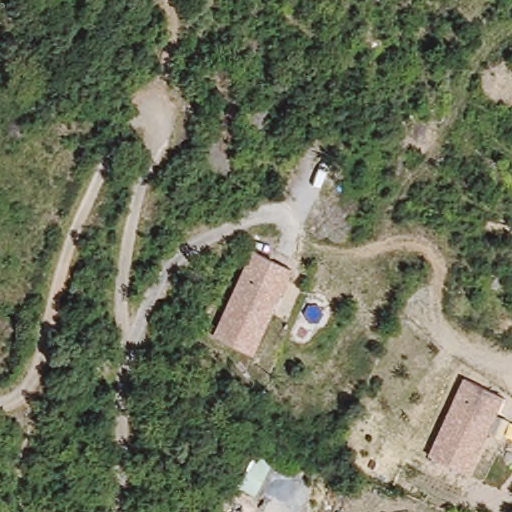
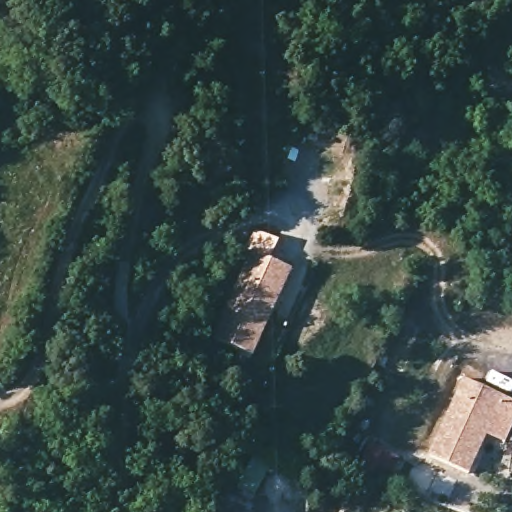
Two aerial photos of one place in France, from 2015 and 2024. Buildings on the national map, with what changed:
unchanged [(252,250),(294,268),(257,353),(215,335),(252,250)]
unchanged [(429,467),(460,377),(500,391),(491,420),(486,435),(470,481),(429,467)]

